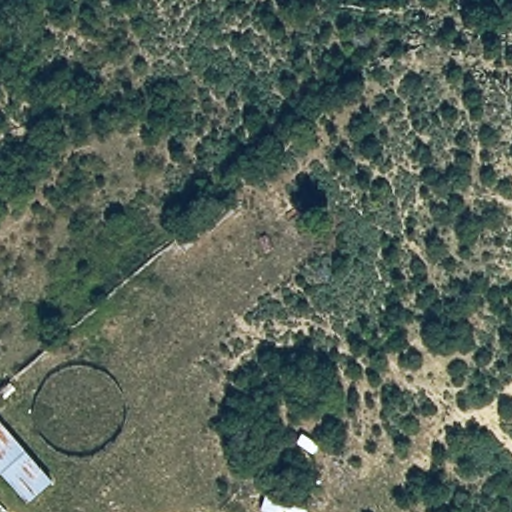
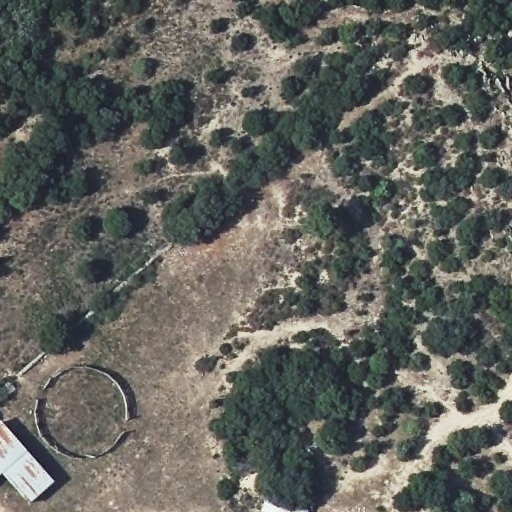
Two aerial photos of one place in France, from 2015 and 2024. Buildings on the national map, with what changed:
unchanged [(2,475),(0,476),(0,422),(55,482),(28,505),(2,475)]
unchanged [(267,494),(295,503),(299,496),(314,500),(312,512),(269,512),(261,510),(267,494)]

